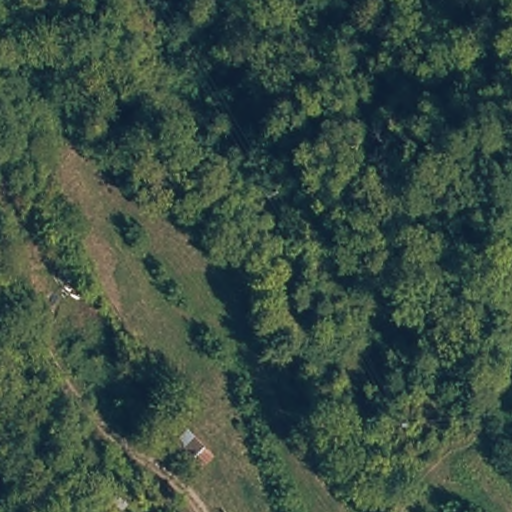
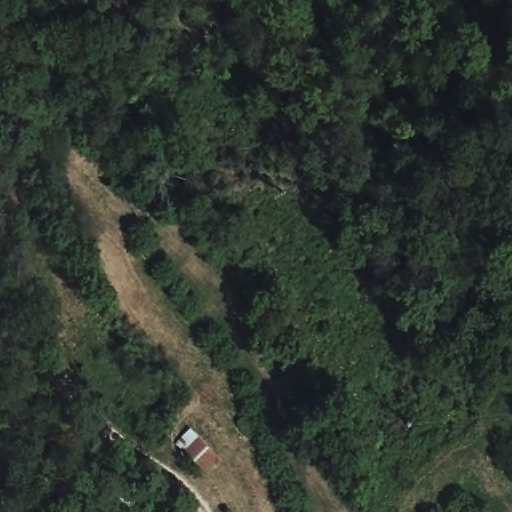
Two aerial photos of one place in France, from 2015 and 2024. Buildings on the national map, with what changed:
unchanged [(218,453),(201,471),(171,441),(190,425),(218,453)]

